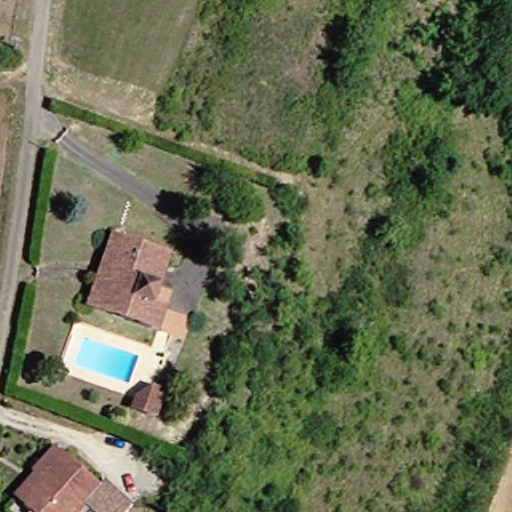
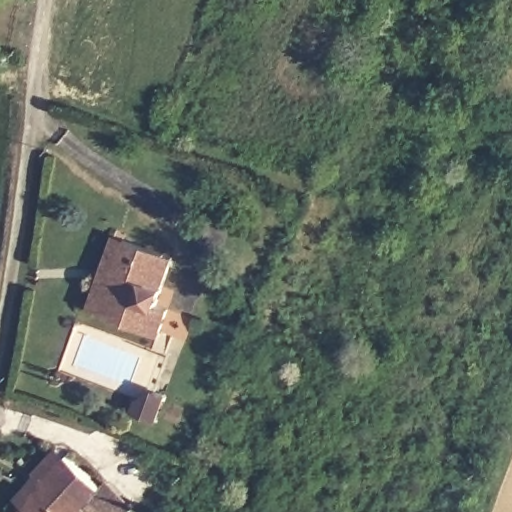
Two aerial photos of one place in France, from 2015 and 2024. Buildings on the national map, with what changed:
unchanged [(182,262),(169,287),(163,303),(175,308),(165,330),(101,302),(92,297),(120,235),(132,240),(170,256),(182,262)]
unchanged [(158,423),(141,414),(136,415),(139,404),(157,396),(168,400),(158,423)]
unchanged [(61,446),(104,488),(85,512),(33,512),(16,498),(61,446)]

